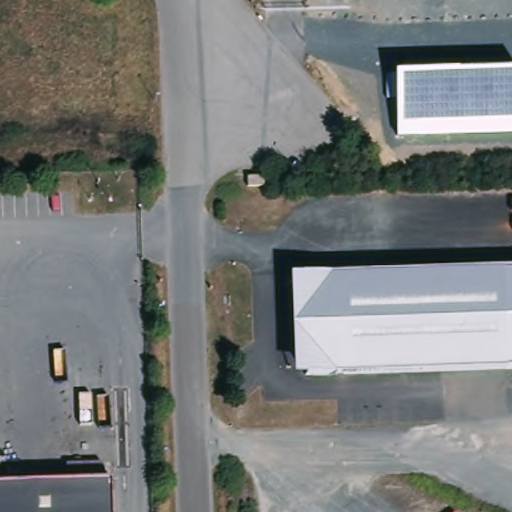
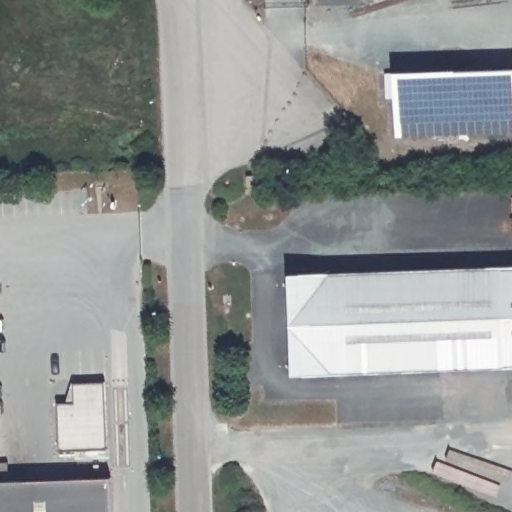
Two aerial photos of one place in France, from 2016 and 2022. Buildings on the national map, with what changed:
unchanged [(395,74),(512,70),(512,134),(397,137),(395,74)]
unchanged [(505,274),(512,273),(512,373),(508,373),(307,381),(303,281),(505,274)]
new [(102,386),(107,386),(112,463),(108,463),(77,464),(77,456),(60,457),(59,412),(57,412),(57,408),(67,408),(73,388),(77,387),(77,389),(102,388),(102,386)]
unchanged [(113,512),(0,512),(0,481),(112,478),(113,512)]

